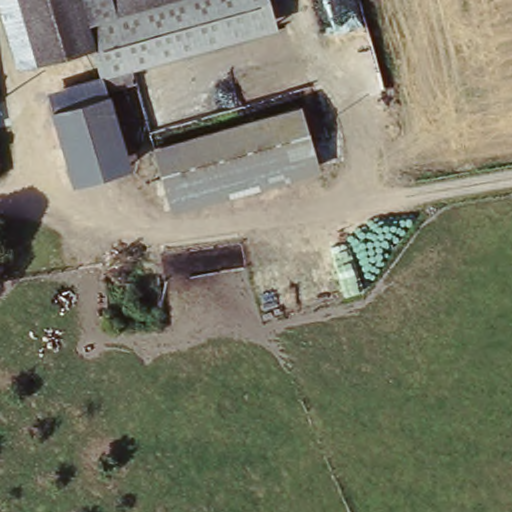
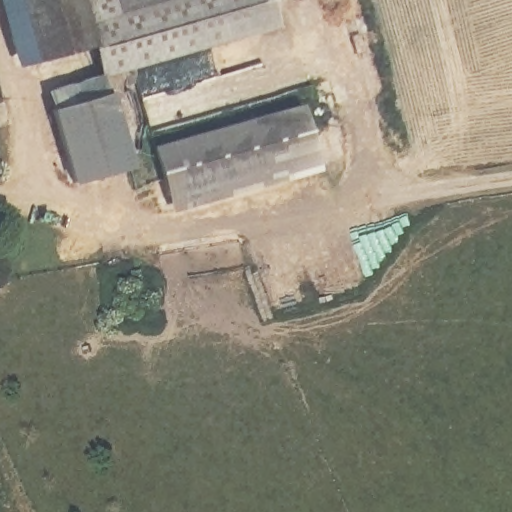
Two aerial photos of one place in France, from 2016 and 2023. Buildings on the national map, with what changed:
unchanged [(23,63),(6,0),(81,0),(91,42),(23,63)]
unchanged [(134,56),(100,64),(98,65),(91,42),(81,0),(265,0),(271,23),(134,56)]
unchanged [(45,92),(105,74),(130,164),(75,178),(45,92)]
unchanged [(166,193),(153,139),(160,136),(304,101),(319,154),(202,183),(166,193)]

